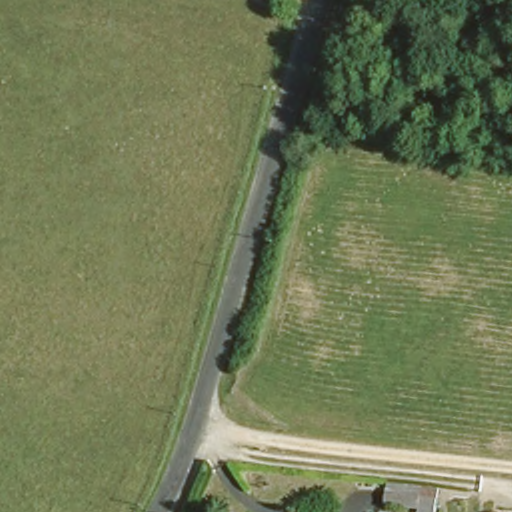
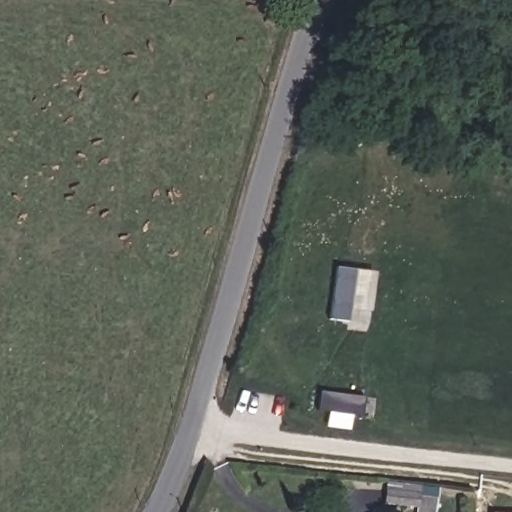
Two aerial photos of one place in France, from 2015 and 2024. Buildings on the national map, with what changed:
new [(375,296),(355,295),(352,322),(331,320),(336,269),(377,273),(375,296)]
unchanged [(386,512),(381,512),(382,499),(383,491),(407,493),(439,497),(437,512),(386,512)]

